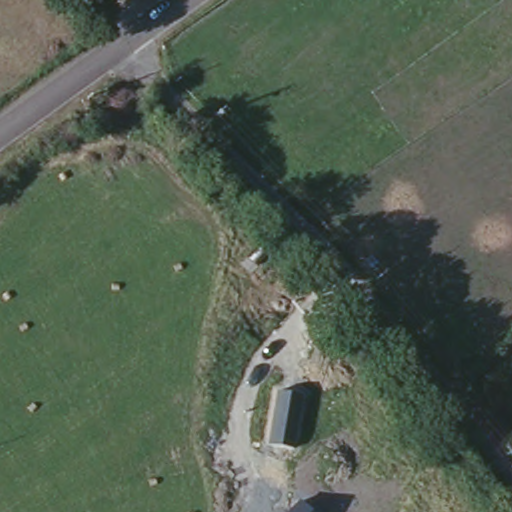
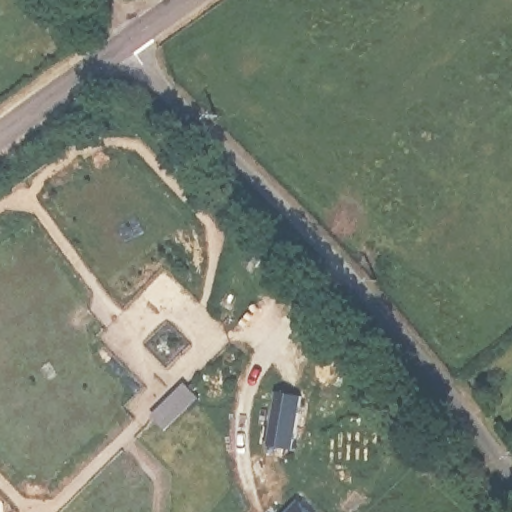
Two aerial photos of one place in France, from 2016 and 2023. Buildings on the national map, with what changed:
new [(153,408),(184,378),(199,394),(166,425),(153,408)]
unchanged [(267,445),(276,391),(304,396),(296,450),(267,445)]
unchanged [(310,512),(289,512),(300,501),(310,512)]

